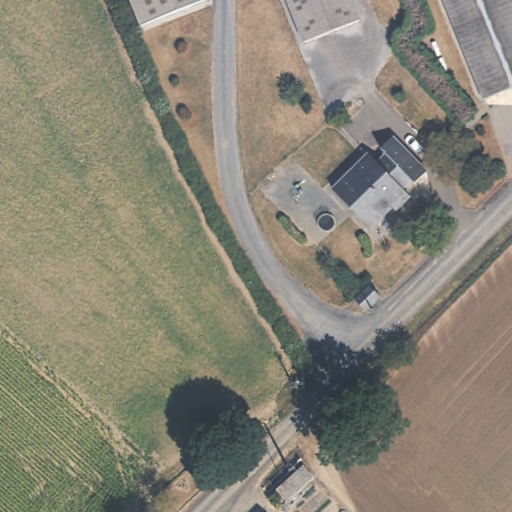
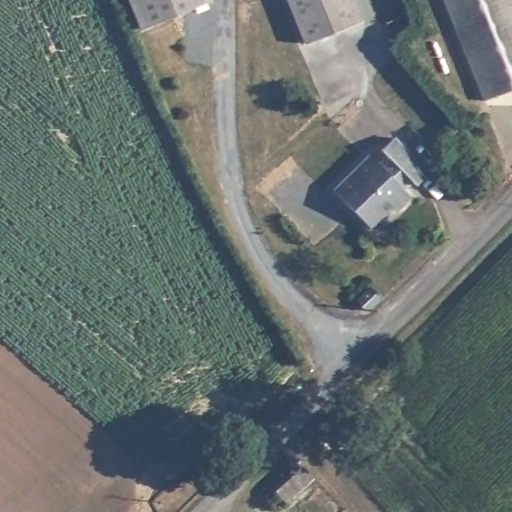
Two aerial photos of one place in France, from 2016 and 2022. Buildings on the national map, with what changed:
unchanged [(140,34),(126,0),(208,0),(209,1),(210,6),(200,10),(140,34)]
unchanged [(308,44),(288,0),(348,0),(358,24),(308,44)]
unchanged [(512,91),(482,103),(442,0),(510,0),(512,6),(512,91)]
unchanged [(379,163),(385,156),(381,152),(395,139),(426,172),(413,184),(410,179),(403,187),(410,194),(392,213),(389,209),(370,227),(334,189),(370,154),(379,163)]
unchanged [(352,298),(358,292),(365,284),(375,293),(367,300),(360,307),(352,298)]
unchanged [(271,489),(320,444),(330,457),(310,479),(313,487),(285,508),(271,489)]

